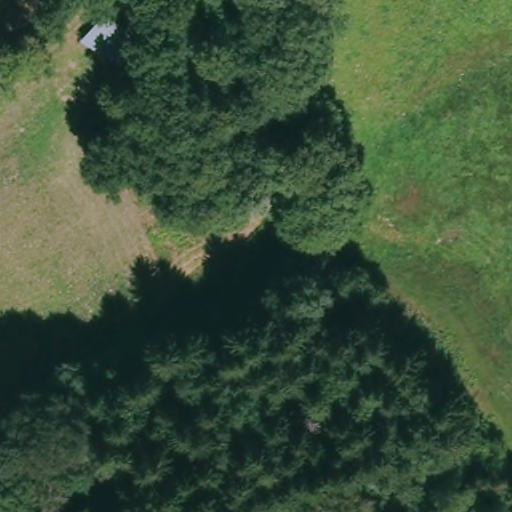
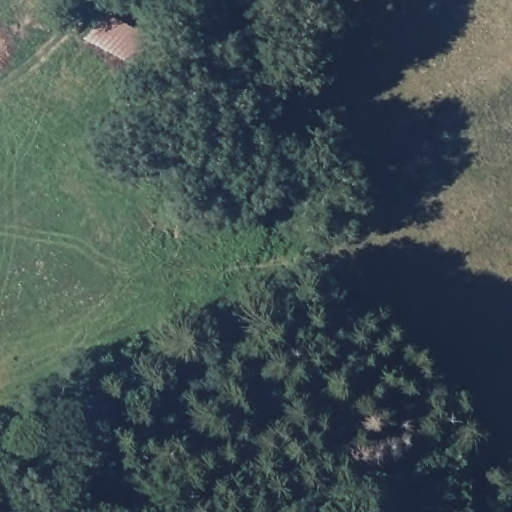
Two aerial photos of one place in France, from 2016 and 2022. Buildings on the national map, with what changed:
unchanged [(73,41),(102,12),(138,39),(123,71),(73,41)]

